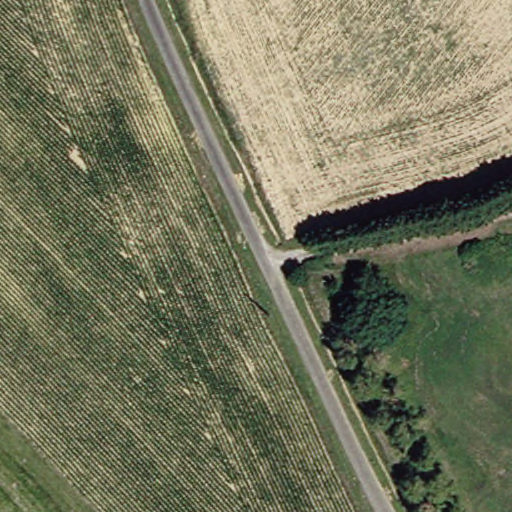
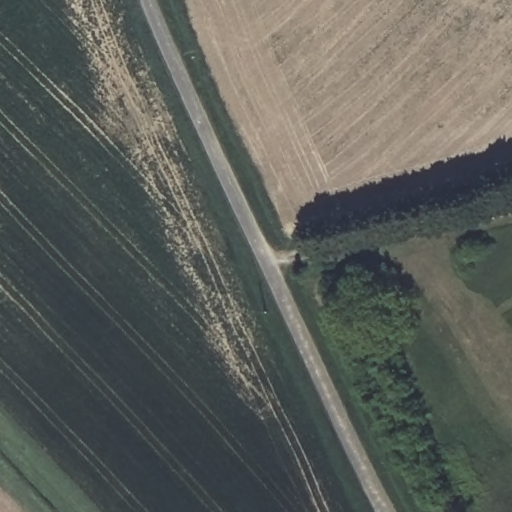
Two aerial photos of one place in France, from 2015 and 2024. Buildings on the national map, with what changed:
[]

